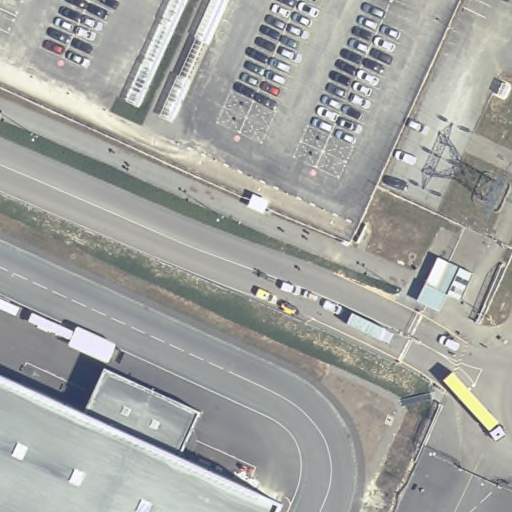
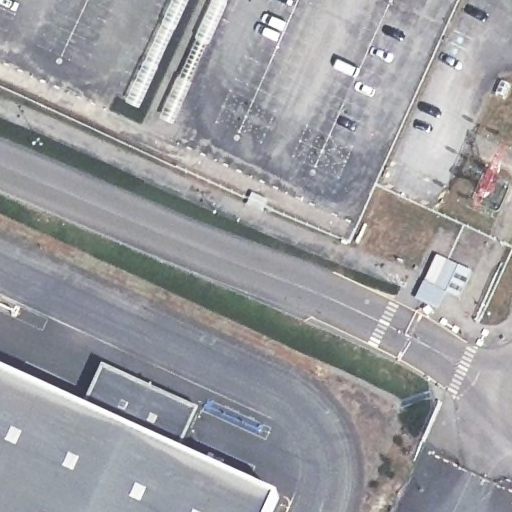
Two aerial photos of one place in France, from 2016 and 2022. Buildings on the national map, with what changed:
unchanged [(81,414),(102,368),(192,408),(195,410),(175,456),(279,502),(275,512),(0,512),(0,378),(81,414)]

